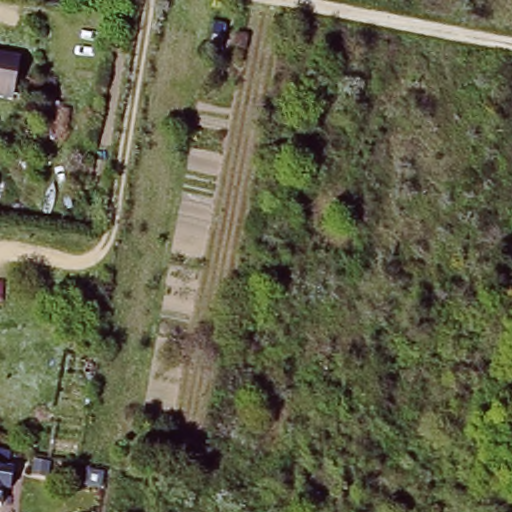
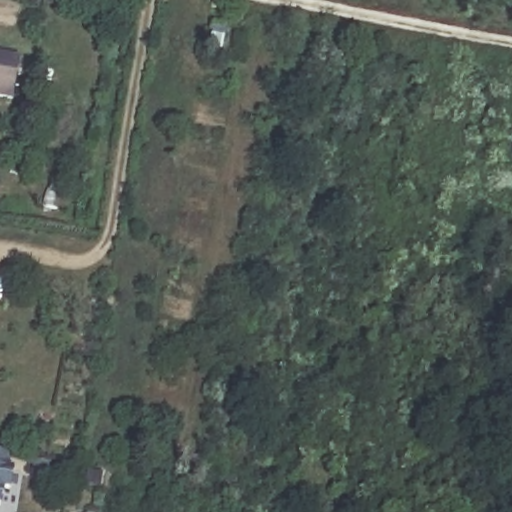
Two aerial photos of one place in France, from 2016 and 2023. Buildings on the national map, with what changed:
unchanged [(0,99),(0,57),(22,61),(14,102),(0,99)]
unchanged [(7,466),(14,467),(10,489),(3,489),(0,507),(0,449),(8,450),(7,466)]

